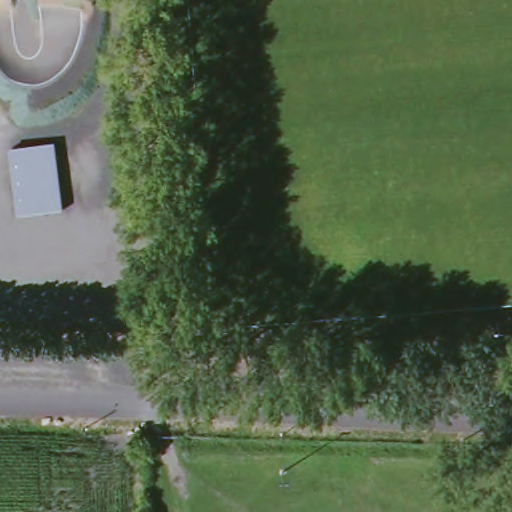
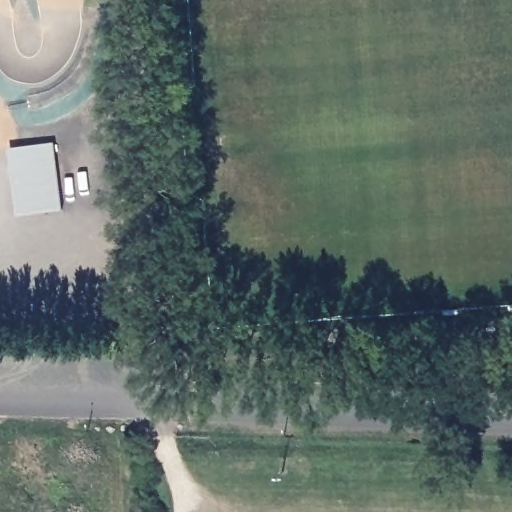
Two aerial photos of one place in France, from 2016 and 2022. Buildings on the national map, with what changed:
unchanged [(15,214),(8,146),(53,142),(61,207),(15,214)]

